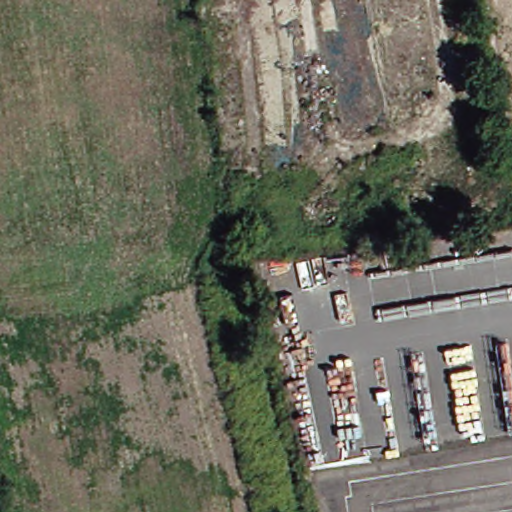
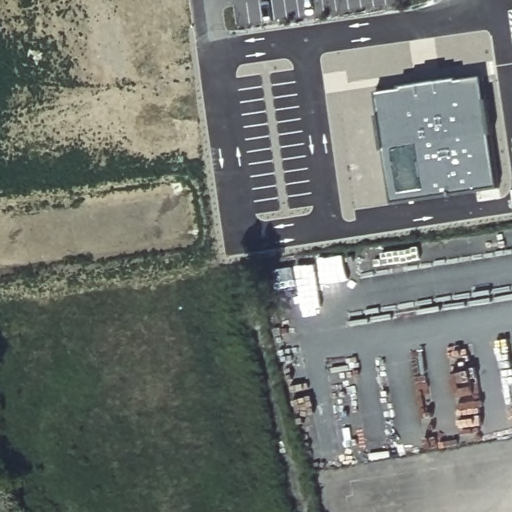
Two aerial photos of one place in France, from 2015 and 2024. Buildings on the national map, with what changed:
new [(500,187),(395,201),(378,93),(483,76),(500,187)]

